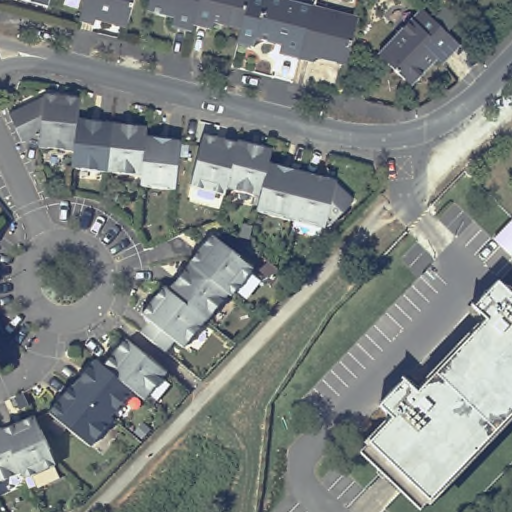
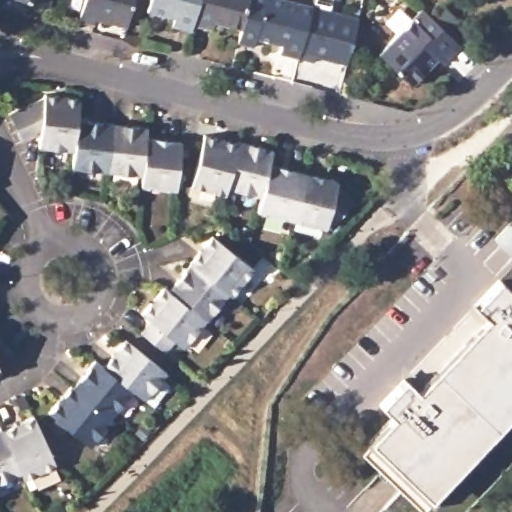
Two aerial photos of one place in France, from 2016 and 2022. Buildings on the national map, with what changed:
unchanged [(46,11),(2,0),(49,0),(46,11)]
unchanged [(95,20),(93,25),(78,22),(83,0),(133,0),(126,27),(95,20)]
unchanged [(194,24),(192,33),(171,27),(174,19),(146,13),(149,0),(200,0),(194,24)]
unchanged [(200,0),(250,0),(243,28),(215,21),(214,30),(194,24),(200,0)]
unchanged [(243,28),(250,0),(290,0),(314,5),(301,59),(282,54),(284,45),(257,39),(255,47),(239,44),(243,28)]
unchanged [(317,57),(316,62),(301,59),(314,5),(360,18),(358,27),(349,65),(317,57)]
unchanged [(461,44),(441,63),(437,60),(412,83),(379,51),(412,18),(423,6),(428,11),(434,18),(461,44)]
unchanged [(77,115),(74,145),(39,141),(39,129),(22,137),(8,108),(43,94),(44,91),(79,92),(77,115)]
unchanged [(111,118),(106,166),(71,162),(73,152),(74,145),(77,115),(111,118)]
unchanged [(146,122),(145,132),(141,170),(106,166),(111,118),(146,122)]
unchanged [(226,182),(224,189),(190,180),(203,130),(237,138),(226,182)]
unchanged [(178,159),(175,184),(140,180),(141,170),(145,132),(180,136),(178,159)]
unchanged [(268,159),(260,190),(226,182),(237,138),(238,135),(272,144),(268,159)]
unchanged [(260,190),(268,159),(302,167),(290,214),(257,205),(260,190)]
unchanged [(337,176),(335,179),(354,195),(333,219),(326,217),(324,222),(290,214),(302,167),(337,176)]
unchanged [(494,239),(512,220),(512,257),(494,239)]
unchanged [(230,290),(228,288),(190,258),(189,257),(212,230),(253,263),(230,290)]
unchanged [(205,315),(169,285),(190,258),(228,288),(206,316),(205,315)]
unchanged [(419,504),(359,445),(392,411),(379,399),(404,373),(417,385),(487,313),(474,301),(499,275),(512,287),(512,286),(512,408),(419,504)]
unchanged [(169,285),(205,315),(183,342),(174,335),(165,347),(140,327),(150,315),(142,309),(164,281),(169,285)]
unchanged [(165,367),(143,393),(131,385),(102,360),(124,334),(165,367)]
unchanged [(102,360),(131,385),(109,412),(73,382),(94,355),(102,360)]
unchanged [(111,413),(89,440),(48,407),(70,380),(73,382),(109,412),(111,413)]
unchanged [(55,459),(23,473),(20,467),(1,425),(34,411),(55,459)]
unchanged [(20,467),(0,476),(0,424),(0,423),(1,425),(20,467)]

